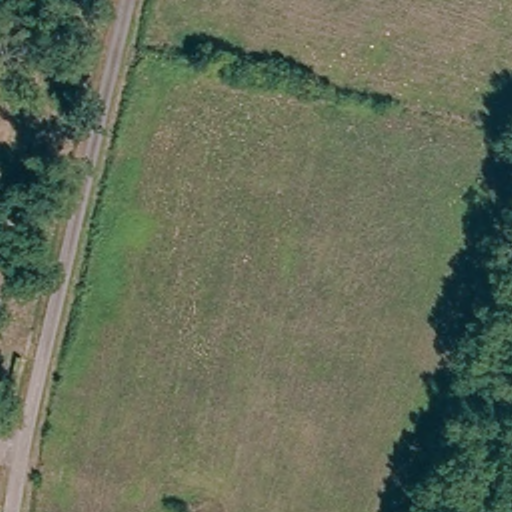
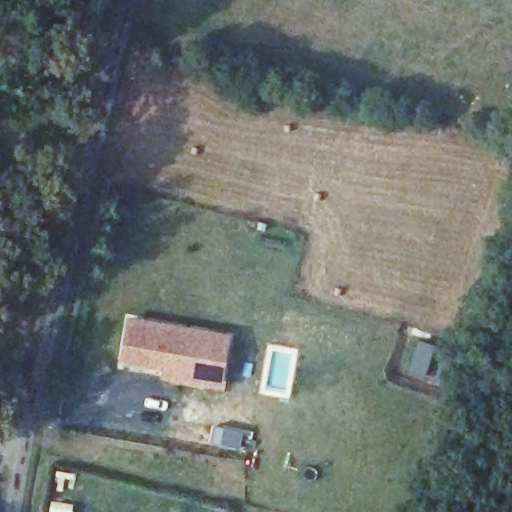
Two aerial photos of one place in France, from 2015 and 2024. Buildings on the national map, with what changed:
new [(231,333),(222,388),(160,379),(161,369),(120,362),(127,315),(231,333)]

